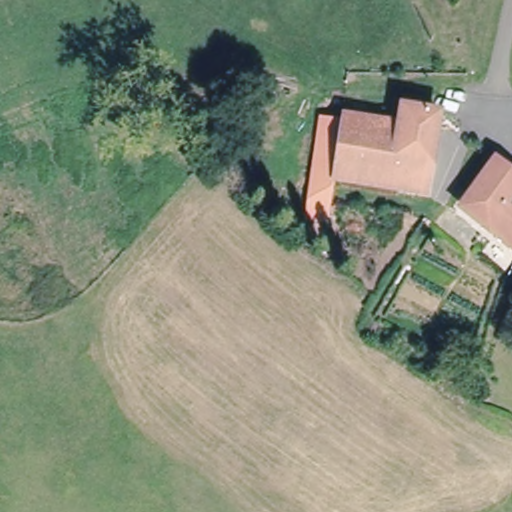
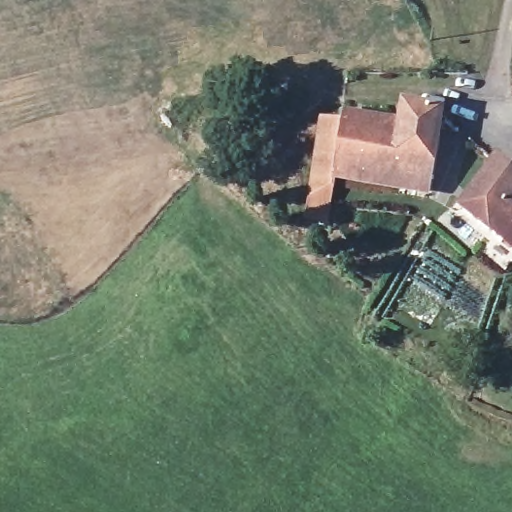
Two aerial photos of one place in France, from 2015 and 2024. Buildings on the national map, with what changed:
unchanged [(320,220),(303,217),(320,114),(337,117),(335,125),(327,177),(320,220)]
unchanged [(335,125),(395,136),(398,119),(431,125),(420,192),(327,177),(335,125)]
unchanged [(506,199),(512,202),(512,245),(456,208),(492,155),(512,166),(512,190),(506,199)]
unchanged [(506,199),(512,190),(512,202),(506,199)]

